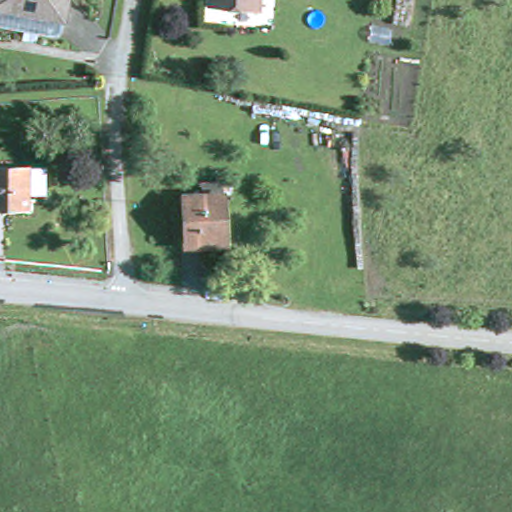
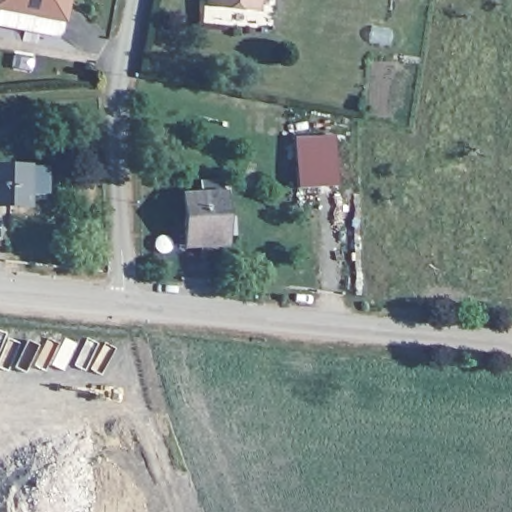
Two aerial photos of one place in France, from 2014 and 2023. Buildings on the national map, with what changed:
unchanged [(57,34),(0,26),(0,0),(63,0),(57,34)]
unchanged [(213,0),(261,0),(261,7),(218,1),(213,1),(213,0)]
new [(334,134),(336,184),(297,186),(294,136),(334,134)]
unchanged [(20,200),(19,210),(0,209),(0,170),(37,171),(37,199),(20,200)]
unchanged [(202,240),(202,243),(184,243),(183,194),(223,193),(224,239),(202,240)]

